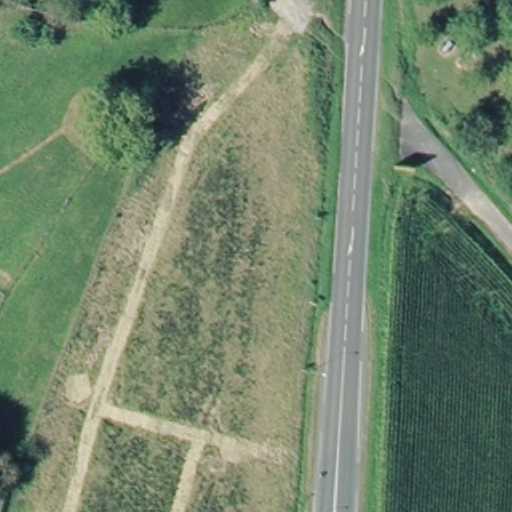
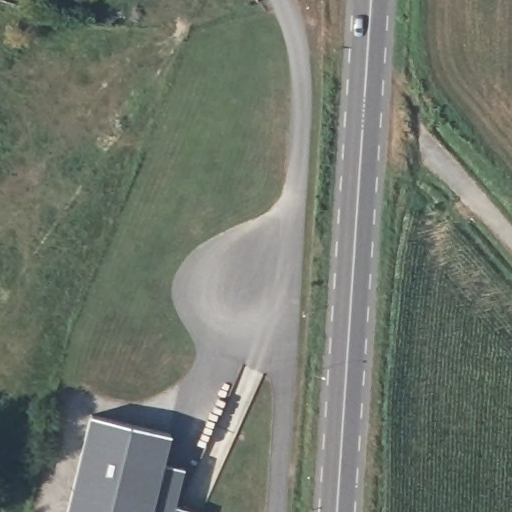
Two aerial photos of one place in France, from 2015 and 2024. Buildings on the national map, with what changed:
new [(89,413),(170,434),(163,462),(184,469),(174,507),(194,512),(65,512),(89,413)]

